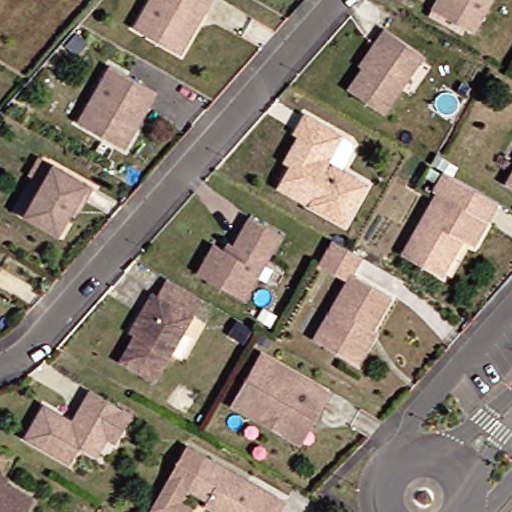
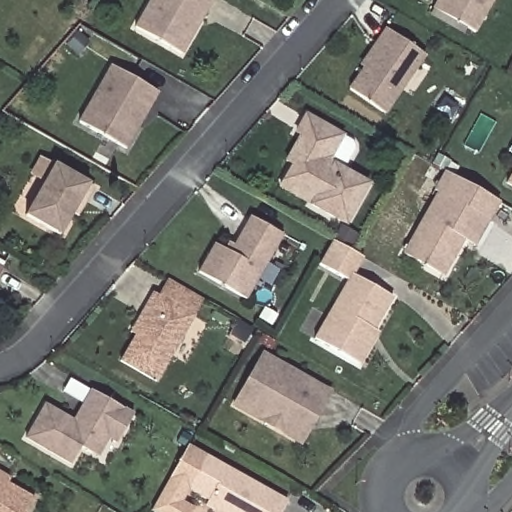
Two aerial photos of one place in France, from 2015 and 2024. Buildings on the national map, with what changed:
unchanged [(136,27),(153,0),(212,0),(214,1),(206,14),(194,34),(182,54),(136,27)]
unchanged [(440,0),(497,0),(480,31),(437,6),(440,0)]
unchanged [(428,56),(387,114),(353,89),(368,67),(365,65),(380,44),(390,29),(428,56)]
unchanged [(127,149),(81,121),(114,65),(160,93),(151,108),(140,127),(127,149)]
unchanged [(296,165),(290,161),(305,135),(300,132),(310,114),(346,135),(355,140),(357,143),(358,145),(358,147),(357,150),(347,170),(371,184),(348,224),(315,204),(283,187),(286,182),(296,165)]
unchanged [(73,213),(61,234),(27,214),(56,164),(95,187),(87,201),(78,216),(73,213)]
unchanged [(466,242),(446,277),(406,253),(441,194),(437,192),(448,173),(451,174),(502,204),(491,223),(477,248),(466,242)]
unchanged [(235,248),(240,250),(257,222),(288,240),(251,304),(204,277),(220,249),(231,255),(235,248)]
unchanged [(366,365),(356,359),(322,339),(355,281),(326,264),(340,240),(370,257),(360,275),(399,298),(381,330),(385,333),(366,365)]
unchanged [(4,267),(0,273),(0,265),(4,267)]
unchanged [(185,362),(172,355),(157,382),(121,361),(136,335),(131,332),(145,308),(154,292),(195,316),(207,323),(185,362)]
unchanged [(297,437),(268,421),(241,405),(247,394),(268,356),(334,393),(317,422),(306,442),(297,437)]
unchanged [(97,453),(86,447),(77,464),(31,438),(50,404),(69,415),(79,421),(96,389),(139,413),(122,442),(114,437),(102,456),(97,453)]
unchanged [(209,507),(211,503),(192,492),(184,504),(197,512),(196,512),(154,512),(151,510),(155,503),(188,446),(252,482),(262,487),(290,503),(285,512),(217,512),(209,507)]
unchanged [(16,476),(14,482),(41,497),(33,512),(0,512),(0,468),(16,476)]

